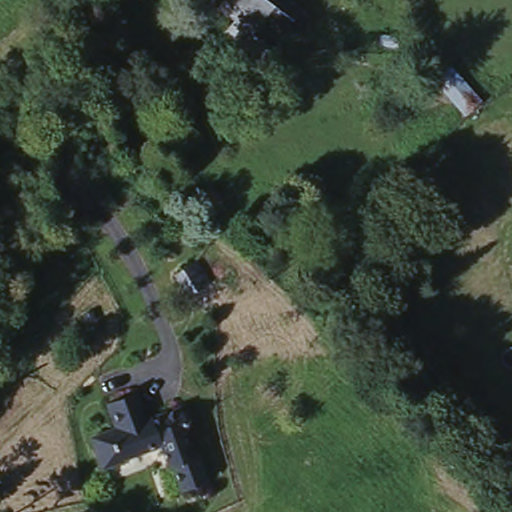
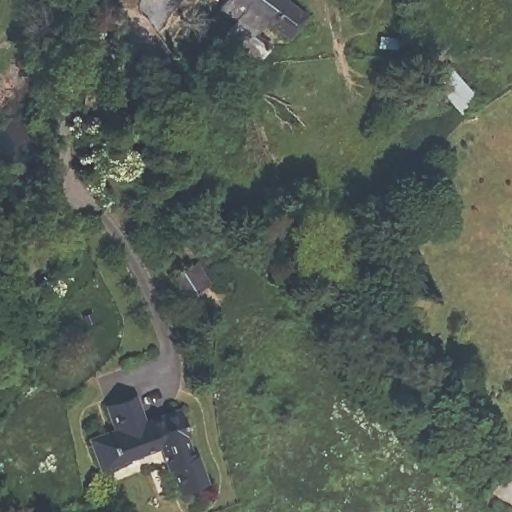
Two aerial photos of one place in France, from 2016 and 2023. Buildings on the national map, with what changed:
unchanged [(238,28),(226,20),(236,6),(231,2),(229,0),(301,0),(317,12),(303,31),(280,13),(267,25),(282,37),(270,52),(238,28)]
unchanged [(465,112),(430,83),(451,62),(482,93),(465,112)]
unchanged [(215,283),(195,290),(185,269),(205,262),(215,283)]
unchanged [(209,480),(185,489),(167,440),(105,464),(95,431),(114,425),(104,397),(136,386),(146,415),(182,403),(209,480)]

